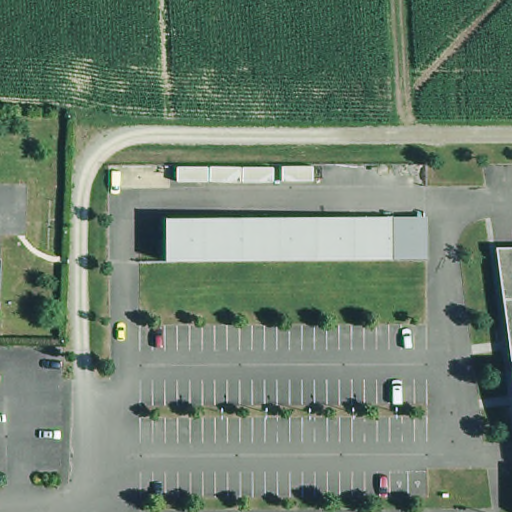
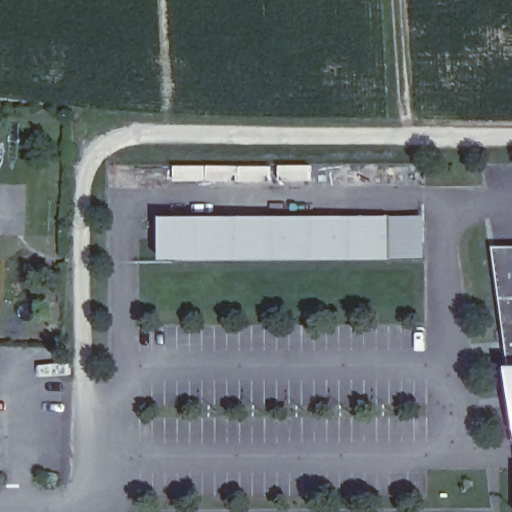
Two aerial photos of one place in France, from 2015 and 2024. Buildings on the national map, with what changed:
unchanged [(166,264),(166,220),(426,220),(426,260),(166,264)]
unchanged [(512,245),(512,362),(499,245),(512,245)]
unchanged [(2,253),(0,305),(0,253),(2,253)]

